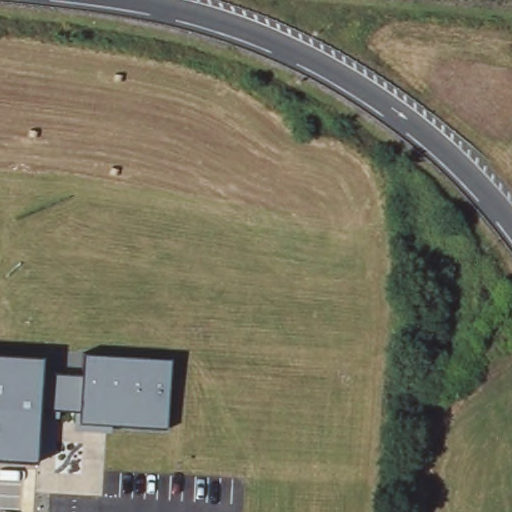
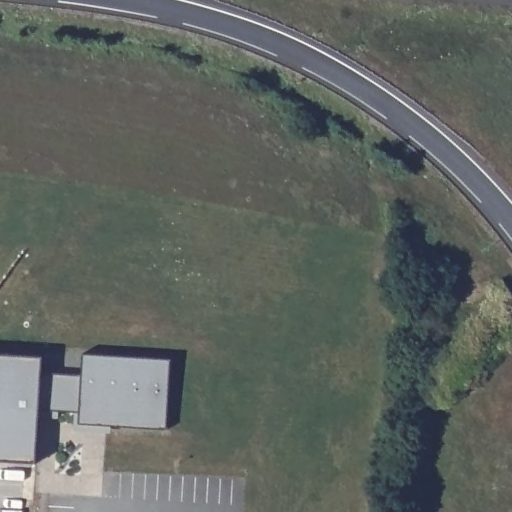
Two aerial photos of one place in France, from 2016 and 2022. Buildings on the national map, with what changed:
unchanged [(42,354),(41,374),(82,376),(83,354),(170,359),(165,427),(78,423),(79,412),(39,409),(35,461),(0,459),(0,352),(42,354)]

